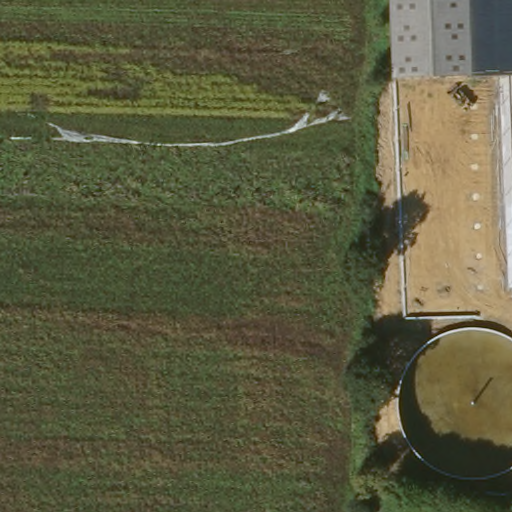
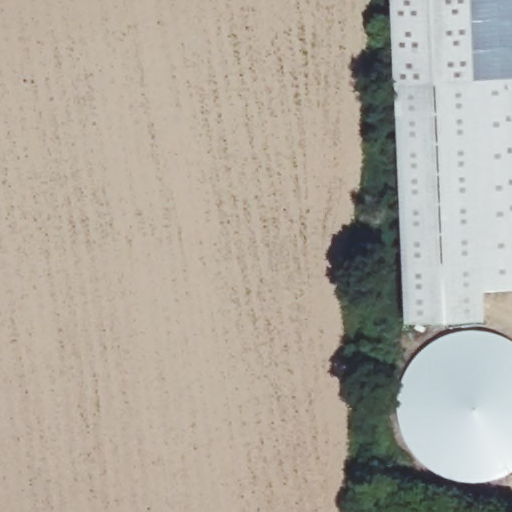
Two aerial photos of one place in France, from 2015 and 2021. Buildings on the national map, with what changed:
new [(482,287),(483,318),(404,321),(389,0),(397,0),(400,77),(512,73),(512,285),(482,287)]
unchanged [(468,0),(471,74),(400,77),(397,0),(468,0)]
unchanged [(471,74),(468,0),(512,0),(512,72),(471,74)]

